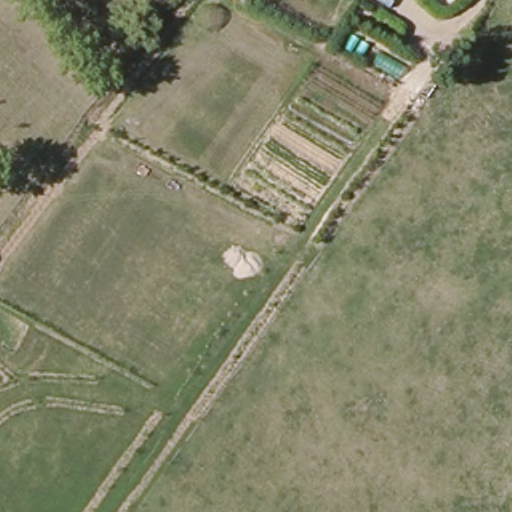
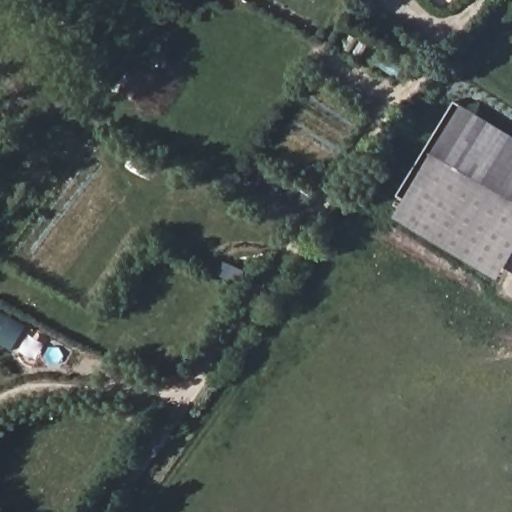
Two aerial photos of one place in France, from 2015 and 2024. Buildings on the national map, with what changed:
new [(394,217),(461,105),(512,135),(512,254),(498,278),(394,217)]
new [(0,344),(0,308),(28,323),(11,351),(0,344)]

